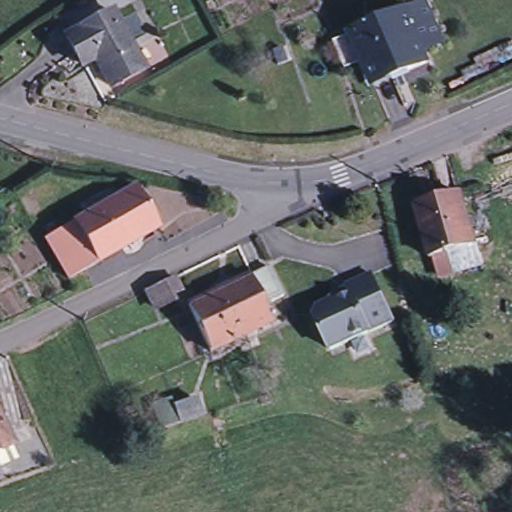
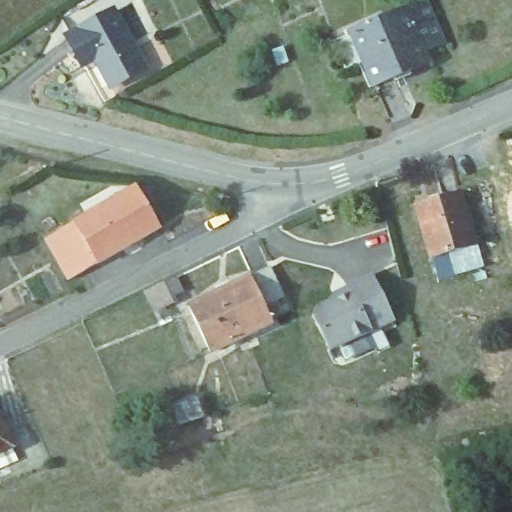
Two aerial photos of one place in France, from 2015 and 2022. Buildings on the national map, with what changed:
unchanged [(67,31),(112,8),(123,27),(78,53),(67,31)]
unchanged [(425,66),(372,87),(352,36),(403,15),(425,66)]
unchanged [(144,64),(112,81),(97,56),(83,62),(78,53),(123,27),(144,64)]
unchanged [(72,224),(133,190),(157,229),(94,264),(72,224)]
unchanged [(480,247),(484,267),(453,274),(446,252),(425,260),(413,205),(460,191),(480,247)]
unchanged [(94,264),(65,280),(42,240),(72,224),(94,264)]
unchanged [(210,353),(190,307),(251,278),(271,270),(283,298),(264,307),(271,324),(210,353)]
unchanged [(367,276),(388,322),(325,351),(310,318),(314,309),(346,295),(343,288),(367,276)]
unchanged [(160,311),(150,292),(167,284),(177,279),(183,293),(174,297),(177,303),(160,311)]
unchanged [(22,442),(0,450),(0,397),(2,397),(22,442)]
unchanged [(179,424),(174,409),(192,403),(197,418),(179,424)]

